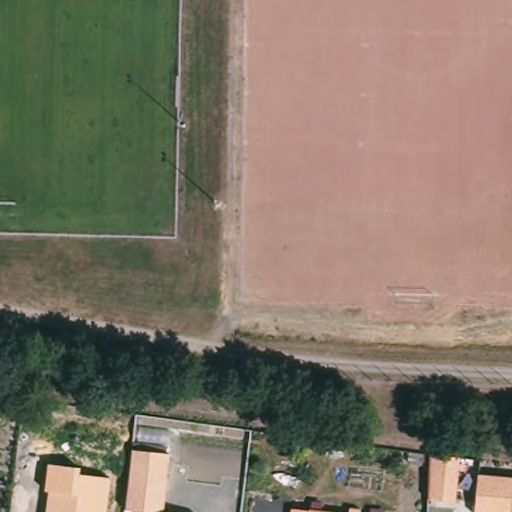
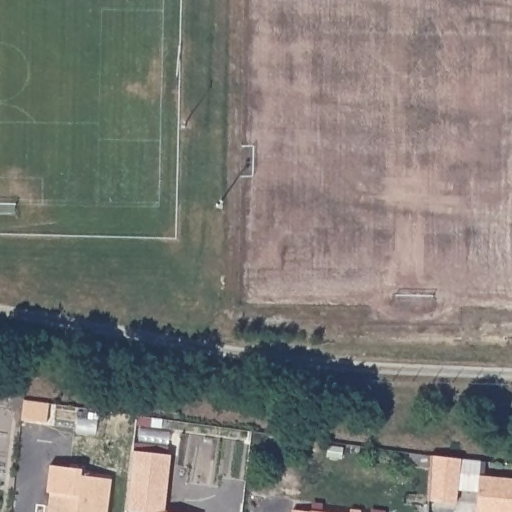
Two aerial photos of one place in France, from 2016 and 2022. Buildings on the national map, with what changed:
unchanged [(132,450),(170,455),(162,512),(142,512),(126,510),(132,450)]
unchanged [(426,501),(429,455),(460,458),(456,504),(426,501)]
unchanged [(46,512),(49,493),(45,492),(48,464),(82,469),(82,475),(111,479),(107,512),(46,512)]
unchanged [(512,477),(512,512),(474,512),(477,474),(512,477)]
unchanged [(318,512),(309,512),(309,511),(318,512)]

